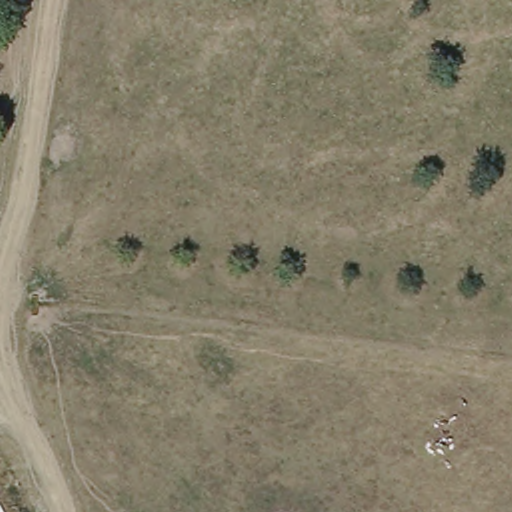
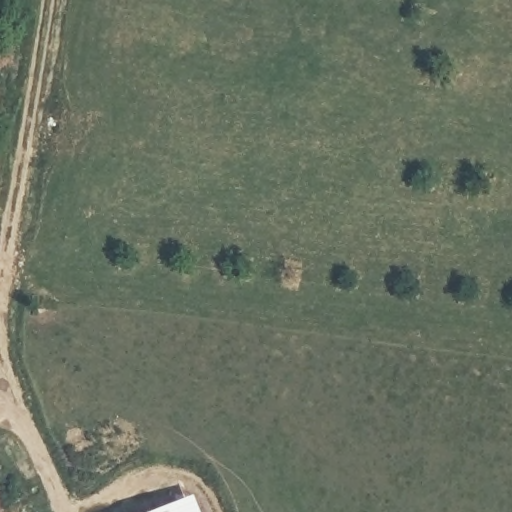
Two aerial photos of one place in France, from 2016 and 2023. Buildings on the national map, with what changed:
new [(192,493),(199,512),(146,512),(192,493)]

